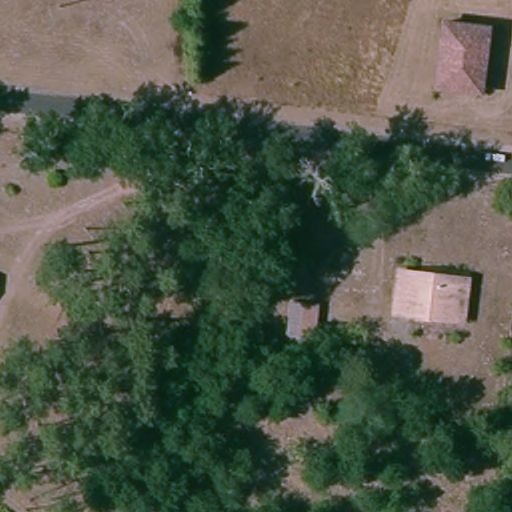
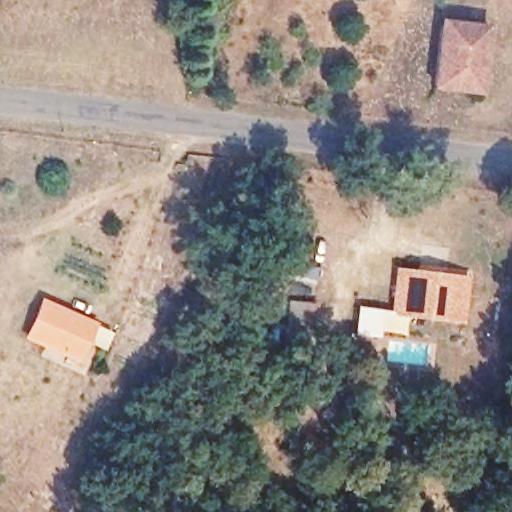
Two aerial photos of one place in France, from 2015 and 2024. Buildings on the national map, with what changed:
unchanged [(458,92),(436,88),(445,22),(487,27),(483,50),(478,94),(458,92)]
unchanged [(319,266),(315,295),(290,293),(294,264),(319,266)]
unchanged [(398,317),(405,271),(446,276),(474,280),(472,289),(465,325),(398,317)]
new [(41,297),(113,329),(105,349),(91,343),(81,363),(24,337),(41,297)]

